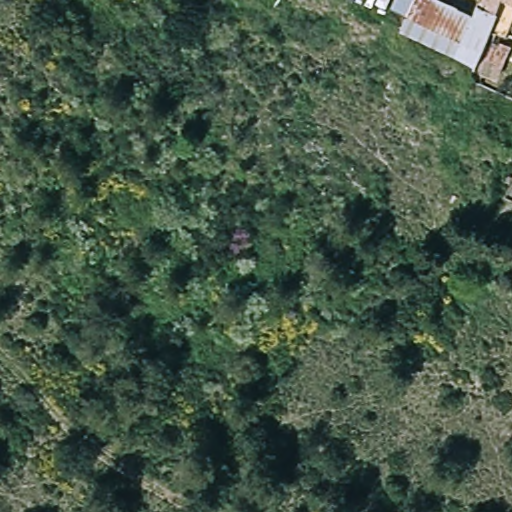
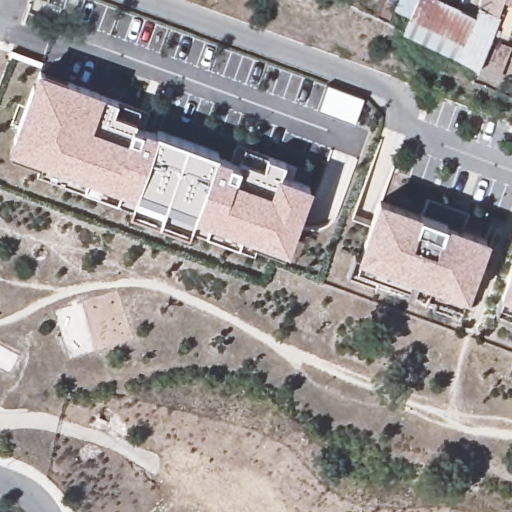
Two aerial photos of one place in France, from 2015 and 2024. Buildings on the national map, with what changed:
unchanged [(481,0),(512,0),(512,27),(509,36),(492,31),(490,39),(512,46),(512,47),(499,79),(476,70),(478,65),(404,30),(410,14),(411,14),(395,6),(397,0),(447,0),(475,14),(481,0)]
new [(104,91),(103,95),(118,100),(141,109),(137,120),(134,125),(143,128),(143,126),(156,130),(157,130),(219,152),(219,154),(230,158),(236,143),(244,146),(267,155),(286,162),(282,173),(312,185),(289,250),(284,249),(282,254),(256,243),(254,247),(239,241),(207,230),(192,224),(189,231),(129,209),(131,202),(118,197),(83,185),(35,169),(37,163),(10,153),(11,149),(8,146),(37,67),(104,91)]
new [(363,100),(353,125),(318,111),(327,86),(363,100)]
demolished [(510,192),(512,188),(512,193),(510,192)]
new [(420,211),(427,197),(469,212),(462,227),(489,237),(467,297),(465,296),(462,305),(458,314),(432,304),(435,295),(414,287),(411,294),(405,291),(408,285),(377,275),(374,282),(347,272),(354,253),(358,254),(378,196),(420,211)]
new [(495,311),(499,303),(502,294),(499,292),(512,257),(512,318),(495,311)]

